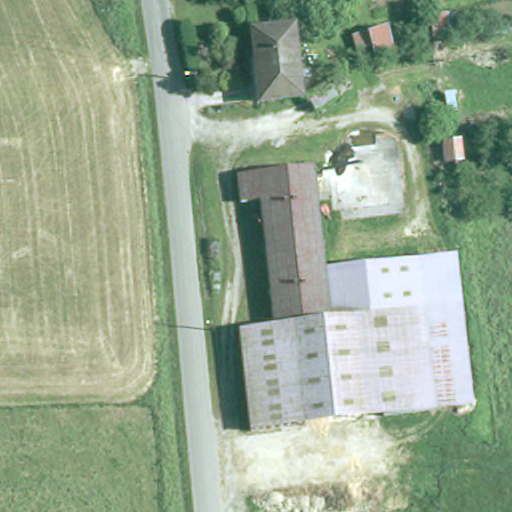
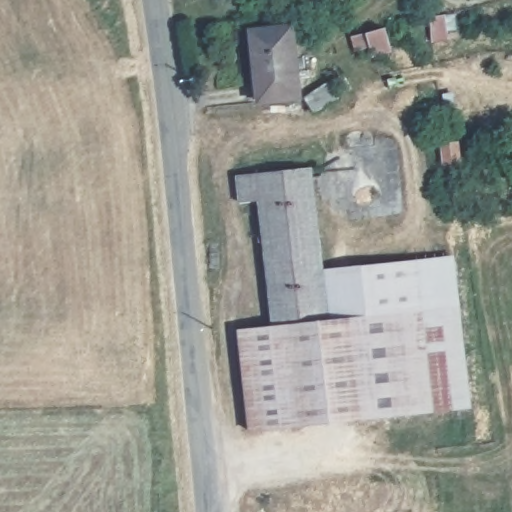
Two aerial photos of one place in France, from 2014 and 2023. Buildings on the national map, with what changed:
unchanged [(293,22),(297,92),(257,95),(252,25),(293,22)]
unchanged [(332,93),(312,110),(302,97),(322,82),(332,93)]
unchanged [(308,161),(320,265),(325,315),(272,322),(258,195),(237,196),(236,170),(308,161)]
unchanged [(455,249),(472,394),(432,400),(415,254),(455,249)]
unchanged [(272,322),(325,315),(320,265),(415,254),(432,400),(251,423),(239,327),(272,322)]

